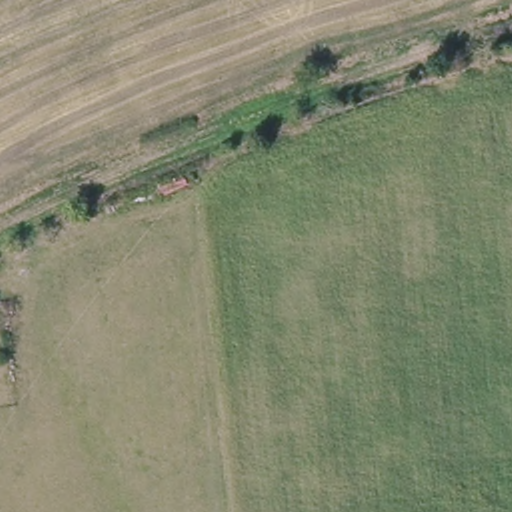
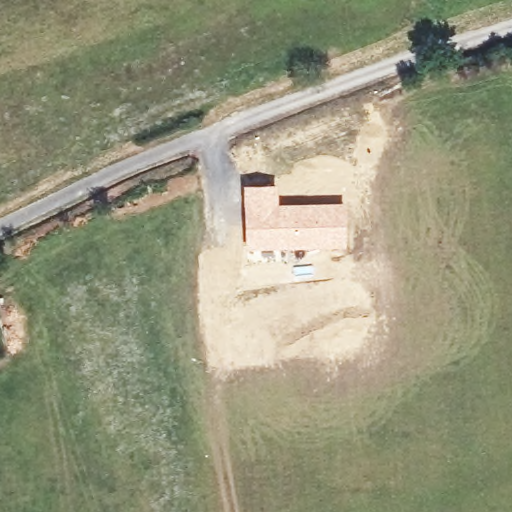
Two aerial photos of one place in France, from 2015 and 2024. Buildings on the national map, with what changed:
new [(276,185),(278,204),(345,203),(345,248),(245,248),(242,185),(276,185)]

